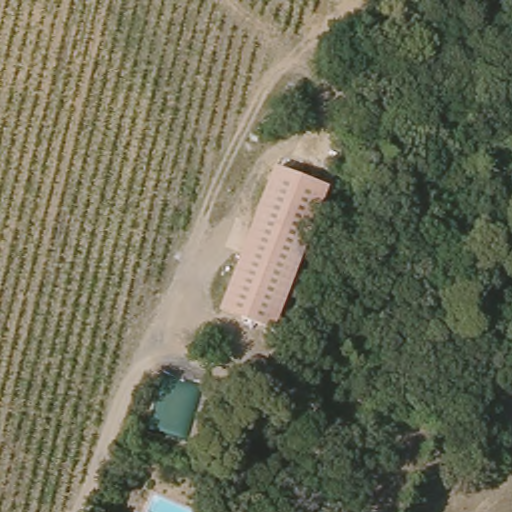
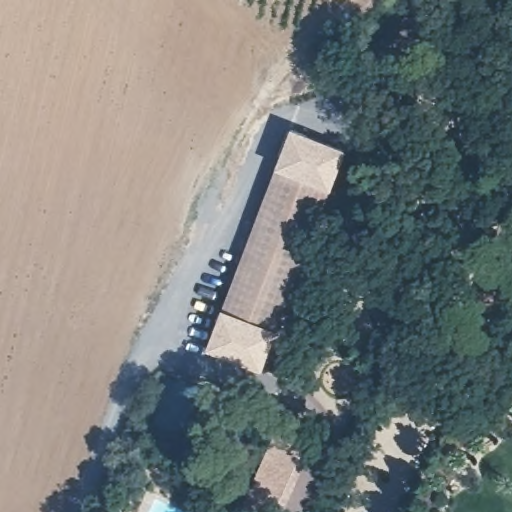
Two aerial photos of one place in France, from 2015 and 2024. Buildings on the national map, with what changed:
new [(345,148),(331,186),(325,184),(276,161),(290,127),(345,148)]
unchanged [(325,184),(264,326),(214,304),(276,161),(325,184)]
new [(221,307),(264,326),(275,330),(262,370),(205,350),(221,307)]
new [(181,410),(157,401),(162,385),(186,393),(181,410)]
new [(309,450),(281,512),(236,512),(272,434),(309,450)]

